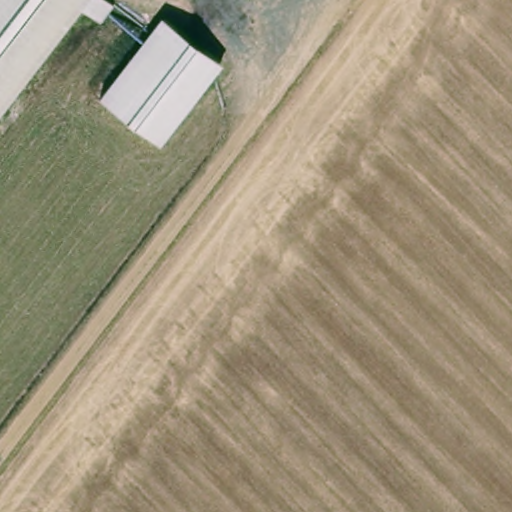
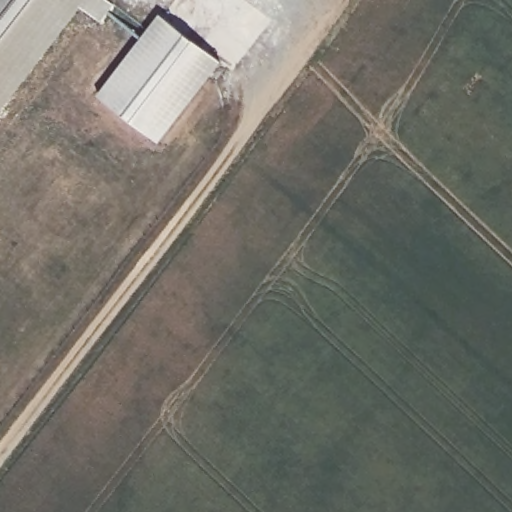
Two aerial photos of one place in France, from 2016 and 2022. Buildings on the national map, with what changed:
unchanged [(0,115),(0,0),(89,0),(0,115)]
unchanged [(220,62),(159,142),(96,98),(159,17),(220,62)]

